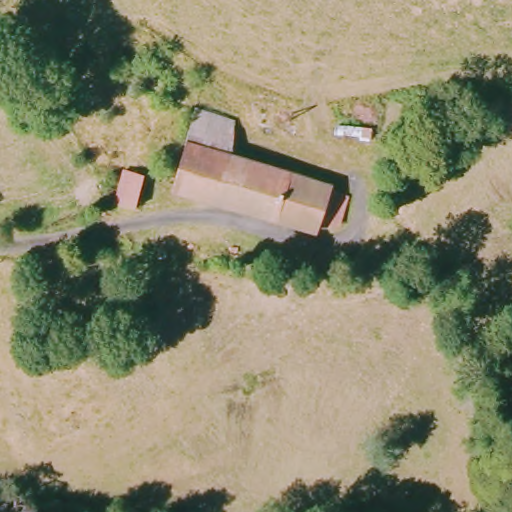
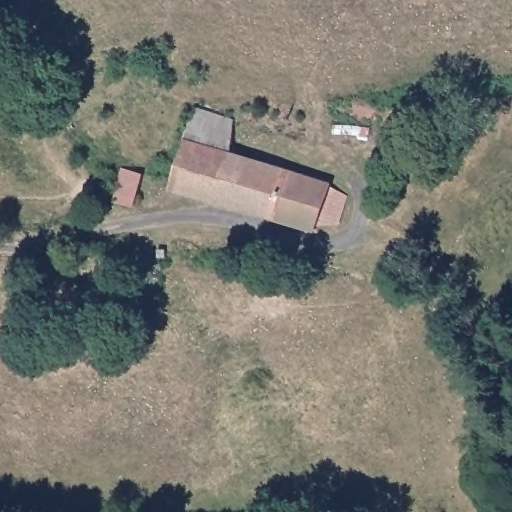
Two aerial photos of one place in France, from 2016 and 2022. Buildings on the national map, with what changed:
unchanged [(220,160),(323,172),(327,181),(345,181),(348,215),(321,213),(316,225),(171,206),(181,123),(222,129),(220,160)]
unchanged [(115,174),(137,177),(134,206),(127,206),(113,202),(113,188),(115,174)]

